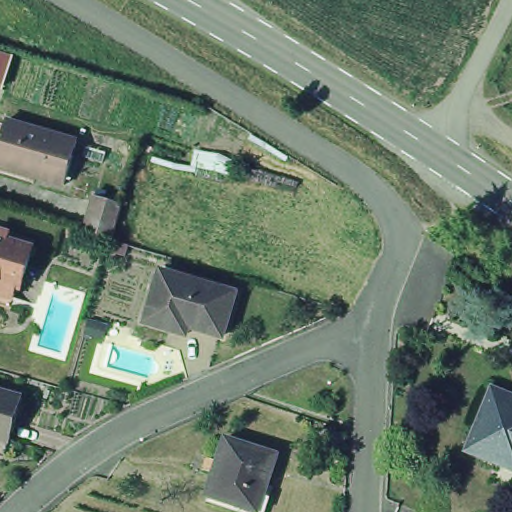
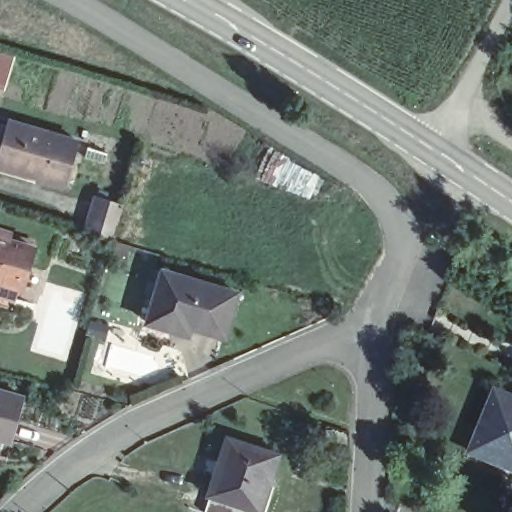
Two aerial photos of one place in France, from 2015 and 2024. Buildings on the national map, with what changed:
unchanged [(0,89),(0,53),(15,58),(4,90),(0,89)]
unchanged [(60,184),(21,172),(0,166),(0,123),(1,119),(73,140),(60,184)]
unchanged [(85,213),(90,194),(118,202),(118,204),(113,221),(107,239),(79,231),(79,230),(85,213)]
unchanged [(133,247),(130,258),(105,249),(107,239),(133,247)]
unchanged [(0,245),(22,251),(10,292),(7,291),(1,313),(0,313),(0,245)]
unchanged [(170,334),(146,327),(148,322),(144,321),(146,314),(150,315),(162,275),(236,297),(223,342),(189,332),(186,339),(170,334)]
unchanged [(103,324),(99,337),(86,333),(90,320),(103,324)]
unchanged [(512,398),(512,464),(495,458),(493,461),(468,451),(482,414),(492,390),(512,398)]
unchanged [(6,445),(0,444),(0,396),(19,401),(6,445)]
unchanged [(221,440),(271,455),(255,512),(204,496),(221,440)]

